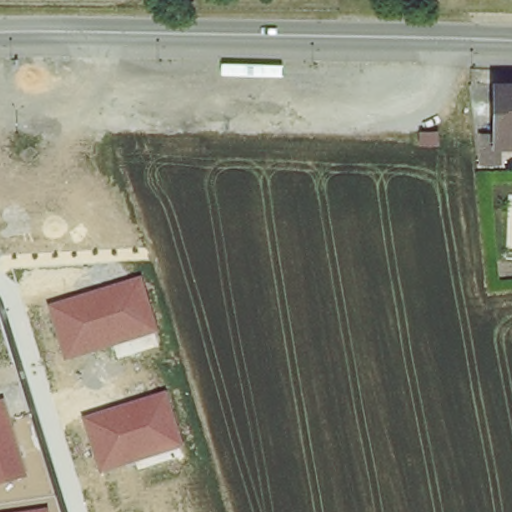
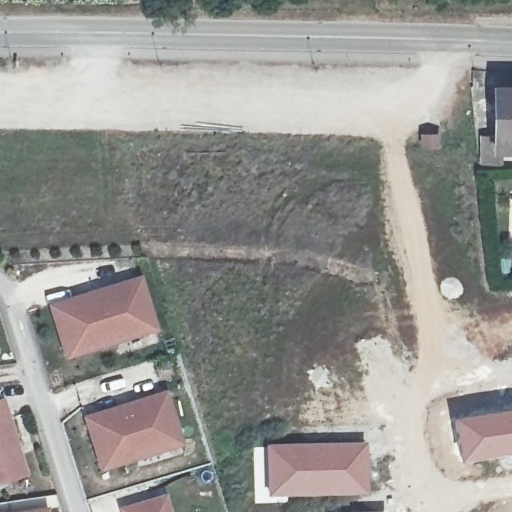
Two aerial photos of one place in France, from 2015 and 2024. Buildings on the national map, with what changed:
unchanged [(512,86),(512,137),(499,136),(499,161),(483,160),(483,135),(494,136),(496,85),(512,86)]
unchanged [(424,134),(439,135),(439,145),(424,145),(424,134)]
unchanged [(139,275),(159,332),(65,360),(48,305),(139,275)]
unchanged [(166,391),(186,447),(99,472),(85,416),(166,391)]
unchanged [(28,475),(0,483),(0,399),(3,397),(28,475)]
new [(512,408),(512,451),(458,460),(451,417),(512,408)]
new [(369,441),(370,496),(264,498),(264,443),(369,441)]
new [(170,512),(118,512),(117,508),(164,493),(170,512)]
unchanged [(47,512),(9,512),(46,506),(47,512)]
new [(386,511),(386,512),(351,512),(351,511),(386,511)]

